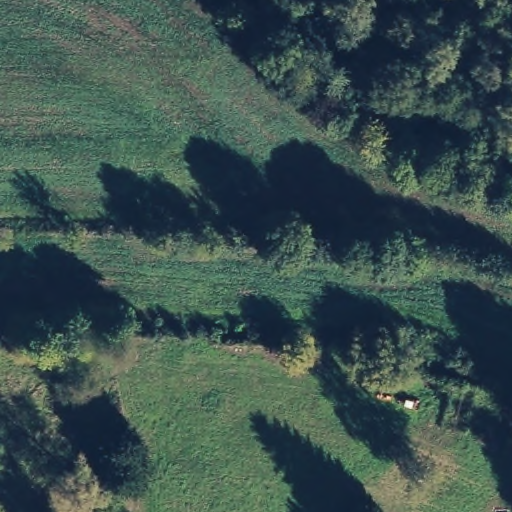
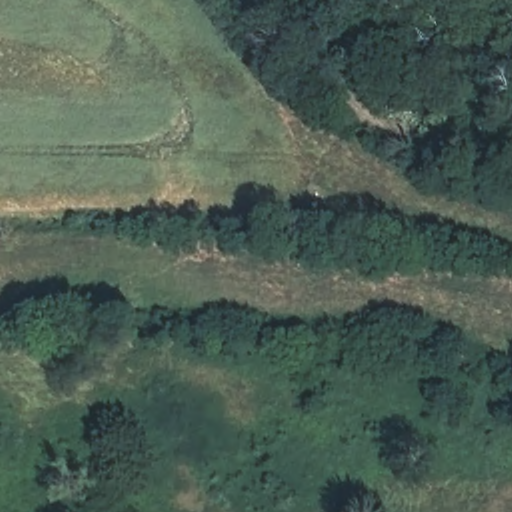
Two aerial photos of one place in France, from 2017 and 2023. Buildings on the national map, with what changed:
[]

